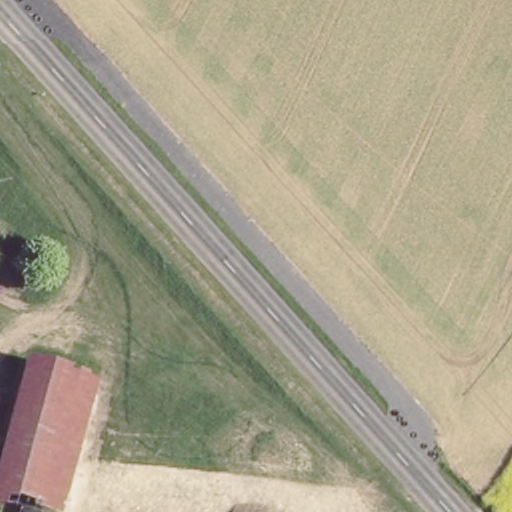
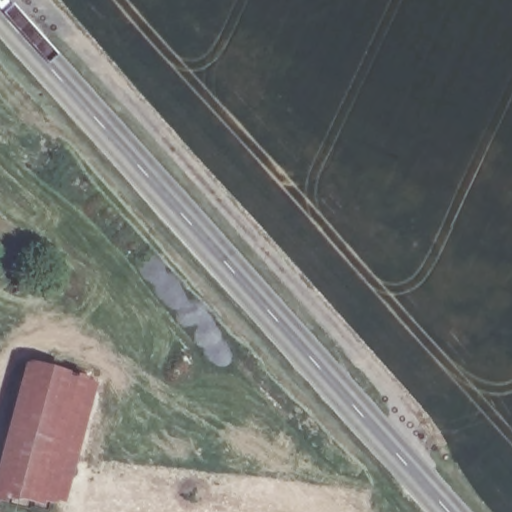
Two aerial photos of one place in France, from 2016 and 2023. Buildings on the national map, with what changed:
unchanged [(94,378),(58,512),(9,512),(0,510),(0,489),(31,364),(94,378)]

